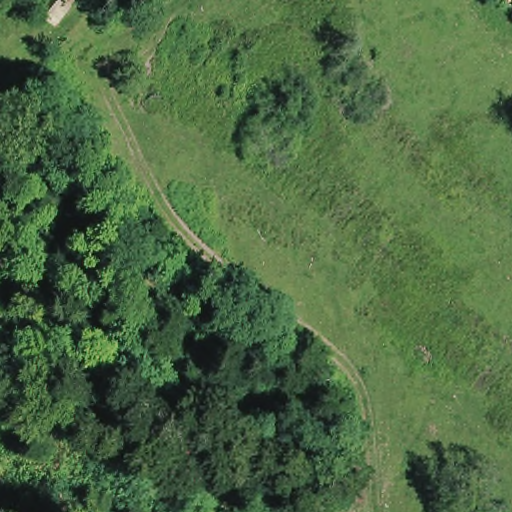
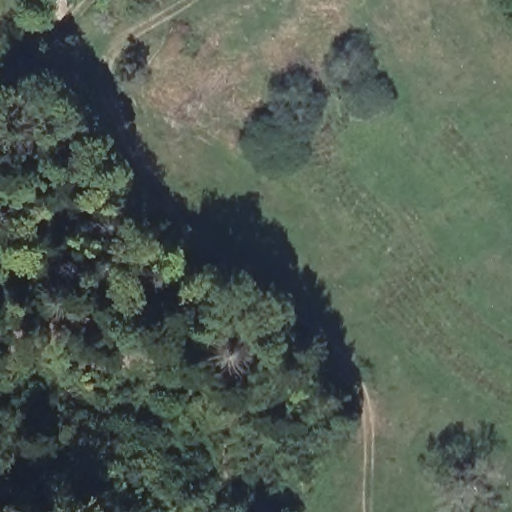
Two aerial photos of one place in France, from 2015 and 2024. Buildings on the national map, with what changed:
unchanged [(39,4),(44,0),(71,0),(54,19),(39,4)]

